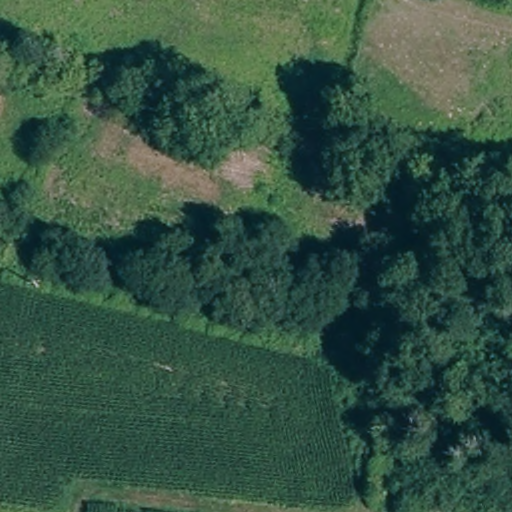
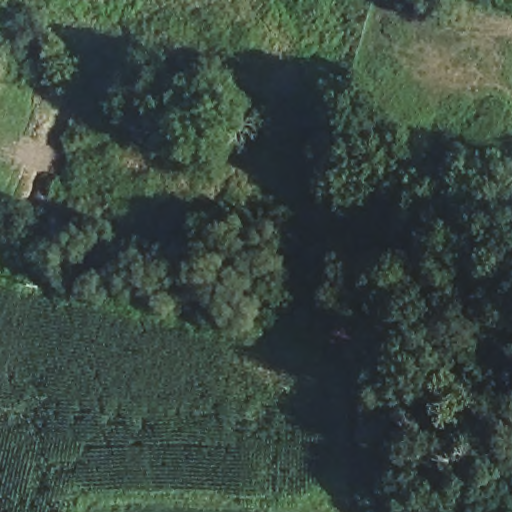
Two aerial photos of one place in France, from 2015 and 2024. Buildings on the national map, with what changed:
[]

